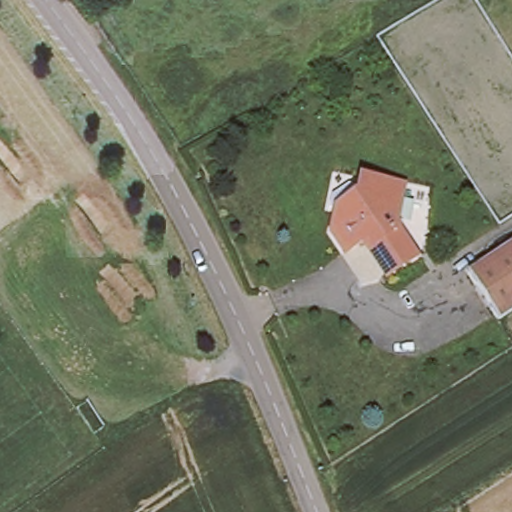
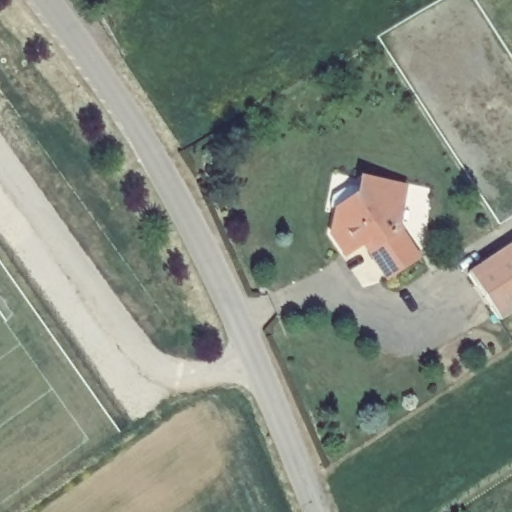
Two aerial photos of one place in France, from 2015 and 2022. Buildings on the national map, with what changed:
unchanged [(379,277),(360,249),(364,246),(359,239),(338,253),(322,231),(326,209),(346,213),(353,180),(394,188),(387,226),(408,258),(379,277)]
unchanged [(512,244),(512,312),(501,319),(469,273),(512,244)]

